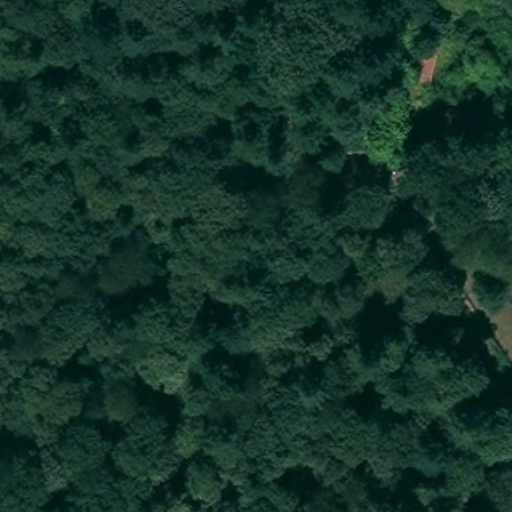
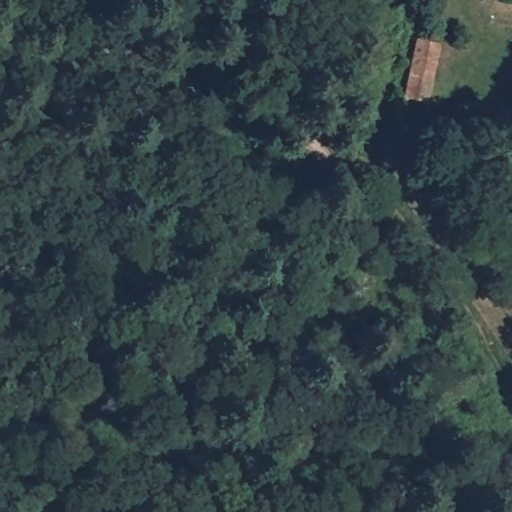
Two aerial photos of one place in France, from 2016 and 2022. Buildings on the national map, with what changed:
unchanged [(417,30),(443,38),(429,99),(401,100),(417,30)]

